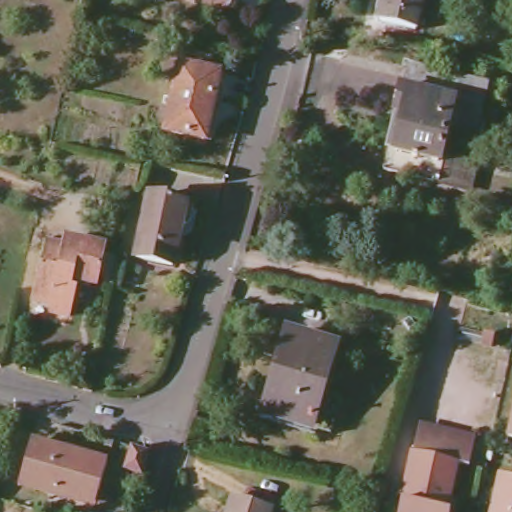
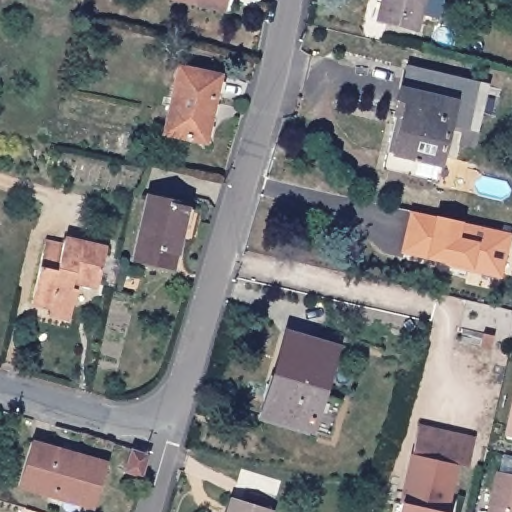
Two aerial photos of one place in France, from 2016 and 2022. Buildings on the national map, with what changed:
unchanged [(196,0),(234,0),(232,8),(196,0)]
unchanged [(380,25),(385,0),(424,0),(416,34),(380,25)]
unchanged [(489,81),(477,129),(447,123),(434,180),(384,168),(406,65),(489,81)]
unchanged [(221,77),(207,145),(167,136),(181,69),(221,77)]
unchanged [(183,204),(182,207),(191,210),(187,227),(180,226),(169,267),(132,260),(146,196),(183,204)]
new [(512,233),(502,279),(400,253),(409,211),(512,233)]
unchanged [(104,246),(95,284),(71,277),(69,285),(75,286),(67,315),(48,310),(50,304),(29,299),(44,239),(60,243),(62,236),(104,246)]
unchanged [(335,347),(312,426),(269,413),(278,384),(272,382),(288,334),(335,347)]
unchanged [(419,423),(475,436),(467,462),(459,460),(413,448),(419,423)]
unchanged [(509,439),(512,424),(512,440),(509,439)]
unchanged [(77,496),(50,488),(49,493),(20,484),(31,440),(107,461),(99,490),(96,501),(77,496)]
unchanged [(132,455),(135,448),(152,453),(145,477),(135,473),(131,472),(127,471),(131,461),(132,455)]
unchanged [(459,460),(447,509),(451,510),(451,512),(403,512),(406,500),(401,497),(413,448),(459,460)]
unchanged [(512,477),(512,512),(493,512),(502,474),(512,477)]
unchanged [(272,507),(270,512),(228,512),(232,496),(272,507)]

